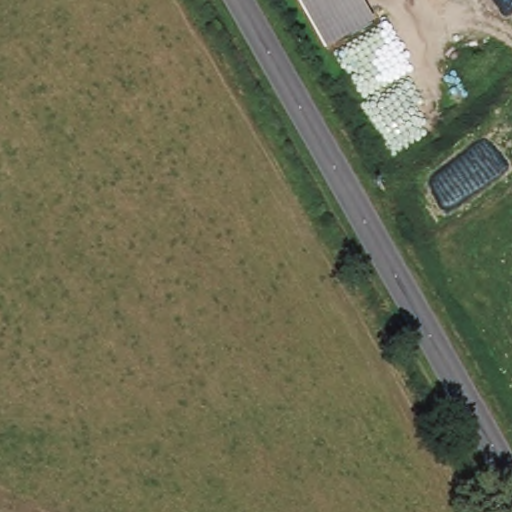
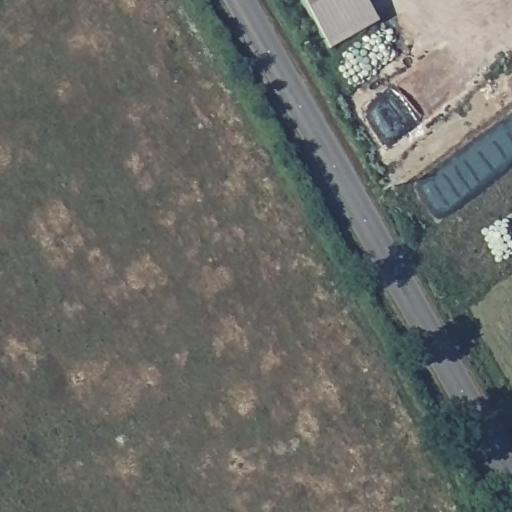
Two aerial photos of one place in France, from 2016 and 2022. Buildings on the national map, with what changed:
unchanged [(379,24),(326,54),(296,0),(366,0),(379,24)]

